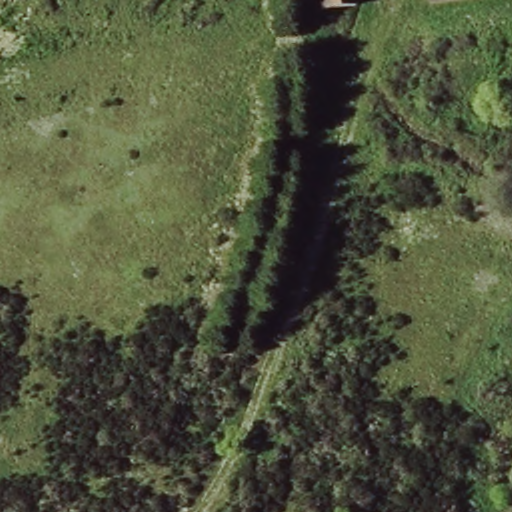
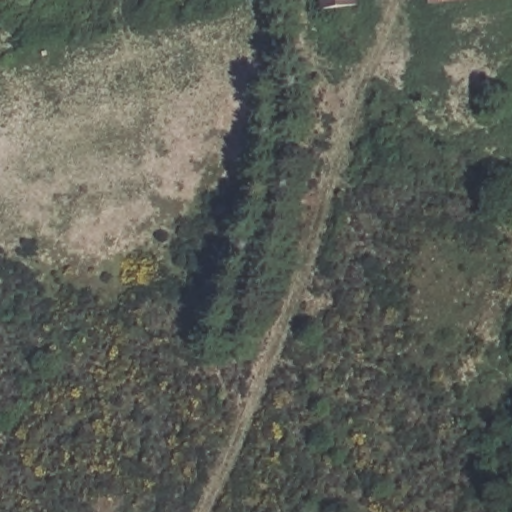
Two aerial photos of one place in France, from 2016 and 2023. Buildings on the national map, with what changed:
unchanged [(313,1),(312,0),(326,0),(313,1)]

